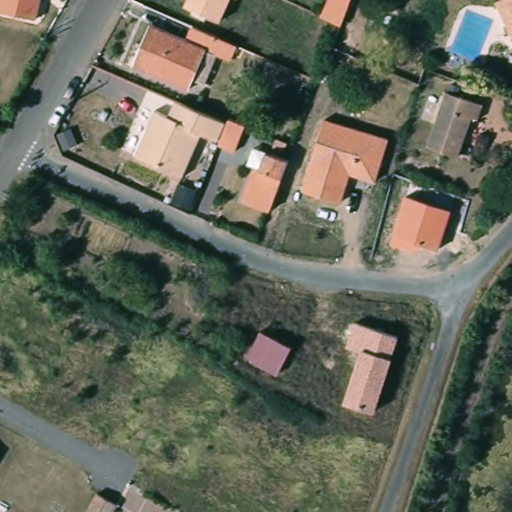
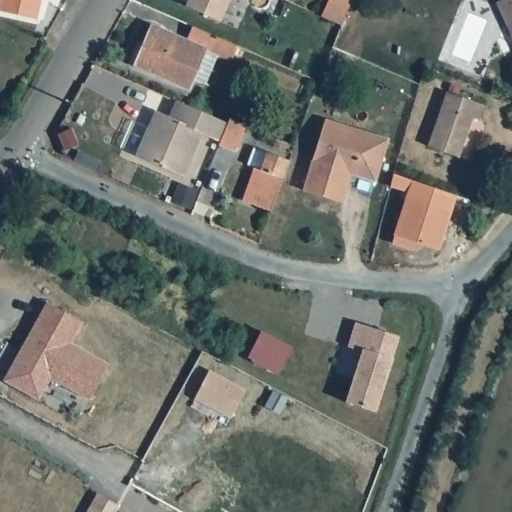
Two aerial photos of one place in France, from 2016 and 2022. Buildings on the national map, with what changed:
unchanged [(0,16),(0,0),(37,0),(33,22),(0,16)]
unchanged [(331,25),(311,15),(318,0),(328,0),(339,6),(331,25)]
unchanged [(497,2),(498,0),(512,0),(512,46),(492,4),(497,2)]
unchanged [(175,38),(182,25),(227,47),(221,60),(208,55),(194,85),(183,80),(178,90),(123,64),(142,22),(175,38)]
unchanged [(478,108),(473,122),(467,120),(452,159),(421,146),(442,94),(478,108)]
unchanged [(163,117),(171,100),(217,121),(209,140),(192,132),(173,174),(129,154),(149,110),(163,117)]
unchanged [(383,140),(370,179),(342,169),(338,180),(342,182),(336,200),(299,187),(321,120),(383,140)]
unchanged [(262,215),(235,204),(249,170),(255,154),(267,159),(282,165),(262,215)]
unchanged [(405,195),(449,210),(438,249),(421,244),(415,250),(391,242),(405,195)]
new [(47,302),(82,321),(70,343),(108,365),(89,400),(50,378),(38,400),(12,385),(3,380),(8,371),(47,302)]
unchanged [(346,345),(354,323),(398,336),(393,358),(378,410),(343,400),(359,348),(346,345)]
unchanged [(248,360),(261,331),(291,347),(278,376),(248,360)]
new [(209,372),(243,390),(230,416),(195,397),(209,372)]
new [(97,493),(114,502),(109,512),(87,512),(97,493)]

